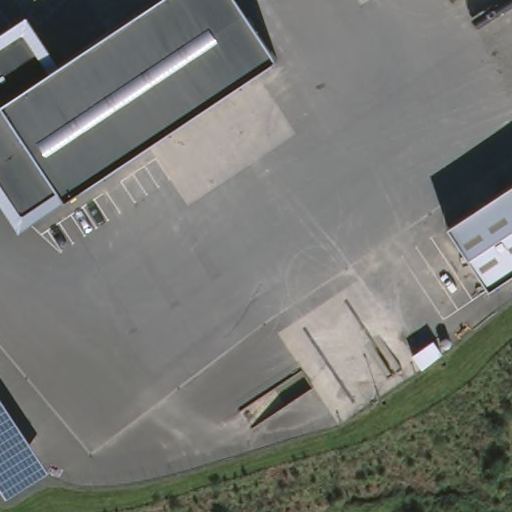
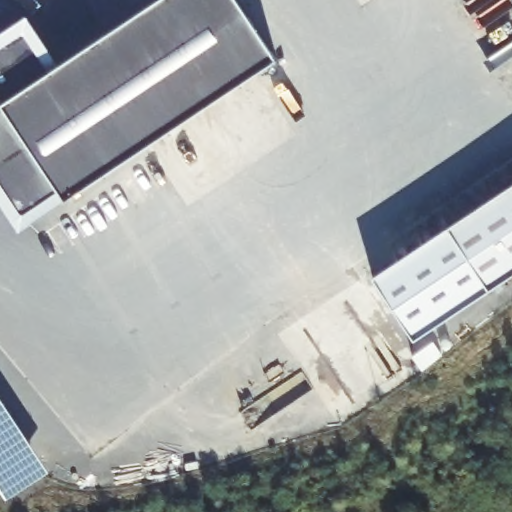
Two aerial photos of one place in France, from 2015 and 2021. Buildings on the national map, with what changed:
unchanged [(31,13),(60,59),(149,0),(244,0),(281,60),(25,227),(0,191),(0,34),(31,13)]
unchanged [(449,225),(512,183),(512,272),(489,286),(449,225)]
new [(489,286),(413,338),(373,277),(449,225),(489,286)]
unchanged [(38,462),(5,481),(0,475),(0,405),(38,462)]

